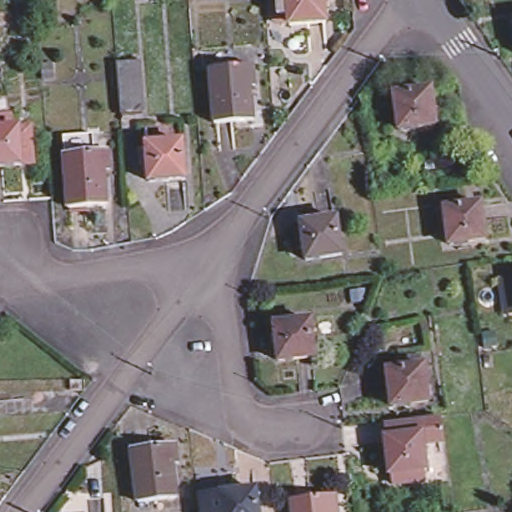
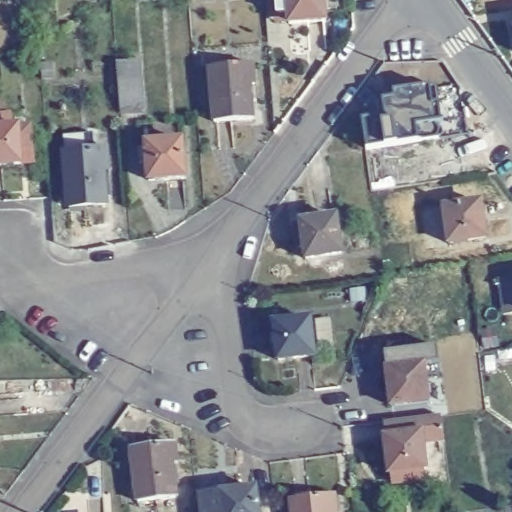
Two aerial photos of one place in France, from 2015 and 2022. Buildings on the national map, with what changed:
unchanged [(289,27),(288,17),(276,18),(275,0),(323,0),(324,24),(289,27)]
unchanged [(121,59),(143,56),(146,107),(125,110),(121,59)]
unchanged [(251,70),(252,88),(246,89),(248,121),(214,125),(208,74),(251,70)]
unchanged [(427,88),(432,124),(396,127),(391,92),(427,88)]
unchanged [(10,125),(24,125),(26,162),(14,163),(0,164),(0,126),(10,125)]
unchanged [(176,135),(178,172),(143,175),(141,137),(176,135)]
unchanged [(99,150),(100,169),(93,170),(95,205),(58,207),(54,154),(99,150)]
unchanged [(473,199),(477,234),(443,237),(438,203),(473,199)]
unchanged [(334,219),(338,254),(302,258),(301,248),(295,249),(291,226),(298,225),(298,223),(334,219)]
unchanged [(308,323),(312,359),(276,363),(273,328),(308,323)]
unchanged [(394,372),(394,361),(418,358),(424,405),(388,409),(384,373),(394,372)]
unchanged [(432,424),(434,442),(413,445),(417,478),(381,482),(376,446),(378,446),(377,431),(432,424)]
unchanged [(169,442),(171,461),(168,461),(171,495),(135,499),(130,446),(169,442)]
unchanged [(214,497),(223,496),(223,490),(258,486),(260,512),(216,512),(214,497)]
unchanged [(331,498),(332,512),(290,512),(289,502),(331,498)]

